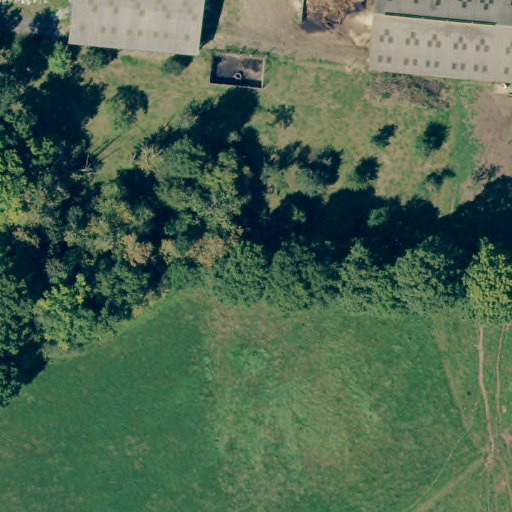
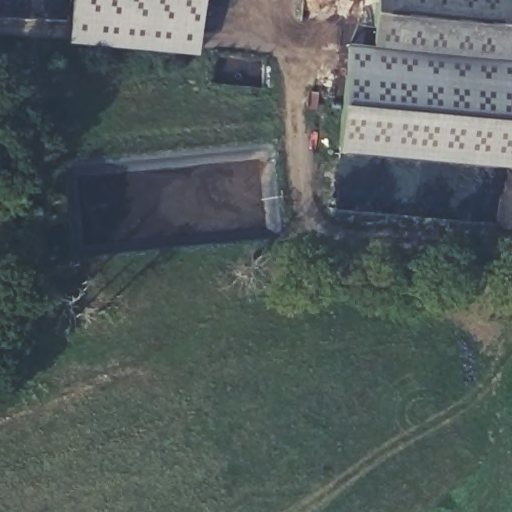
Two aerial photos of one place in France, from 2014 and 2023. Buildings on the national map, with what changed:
unchanged [(76,0),(202,0),(196,56),(72,44),(76,0)]
unchanged [(379,0),(512,0),(512,83),(371,70),(379,0)]
new [(371,70),(512,83),(512,171),(337,156),(348,47),(373,49),(371,70)]

